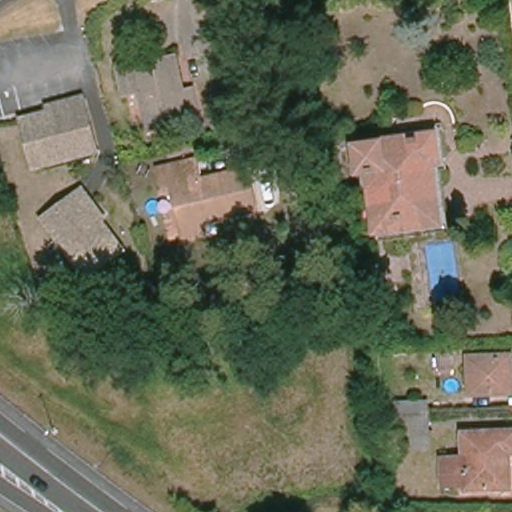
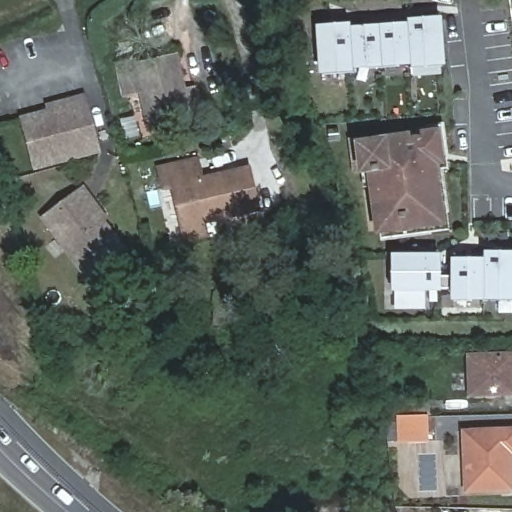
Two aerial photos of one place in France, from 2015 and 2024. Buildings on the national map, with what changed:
new [(314,26),(350,23),(350,27),(407,24),(407,20),(440,17),(443,66),(318,75),(314,26)]
unchanged [(189,90),(198,89),(205,117),(154,129),(145,91),(129,95),(121,64),(139,60),(140,65),(181,55),(189,90)]
unchanged [(98,154),(36,171),(21,120),(69,107),(67,102),(83,99),(98,154)]
unchanged [(440,221),(378,230),(370,169),(361,170),(357,144),(435,134),(439,161),(432,162),(440,221)]
unchanged [(185,240),(182,226),(173,186),(164,188),(162,181),(161,181),(158,167),(196,159),(201,179),(248,167),(258,209),(203,222),(206,235),(185,240)]
unchanged [(129,246),(94,275),(46,219),(86,186),(96,200),(93,203),(129,246)]
new [(451,259),(483,259),(483,252),(512,252),(512,301),(451,301),(451,259)]
new [(441,254),(440,293),(425,293),(425,310),(395,309),(395,292),(391,292),(392,254),(441,254)]
unchanged [(512,392),(471,393),(469,356),(486,355),(511,355),(512,392)]
unchanged [(398,447),(398,435),(398,434),(397,433),(397,412),(397,402),(427,401),(428,410),(428,433),(429,446),(398,447)]
unchanged [(511,487),(466,489),(464,432),(512,431),(512,452),(509,452),(511,487)]

